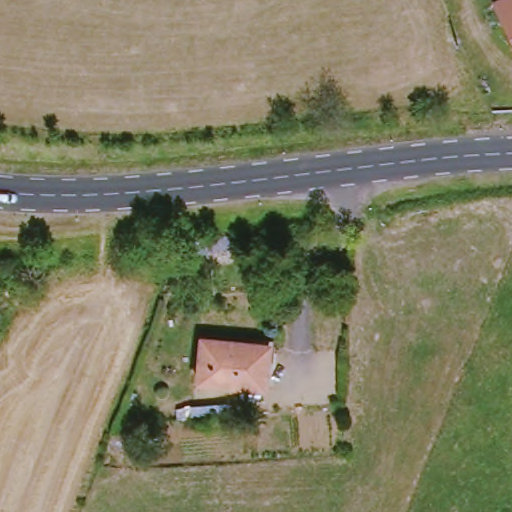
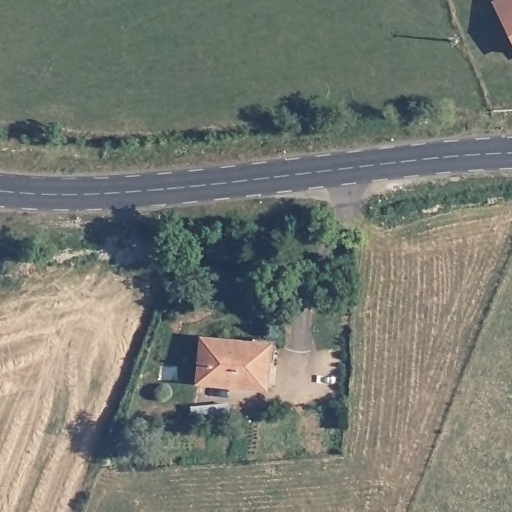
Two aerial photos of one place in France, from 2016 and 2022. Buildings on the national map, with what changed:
unchanged [(512,22),(505,10),(512,6),(512,23),(512,22)]
unchanged [(235,254),(187,260),(186,241),(233,234),(235,254)]
unchanged [(276,345),(270,390),(202,385),(206,340),(276,345)]

